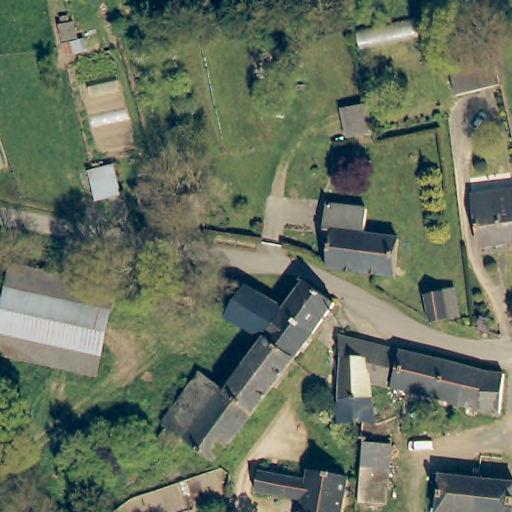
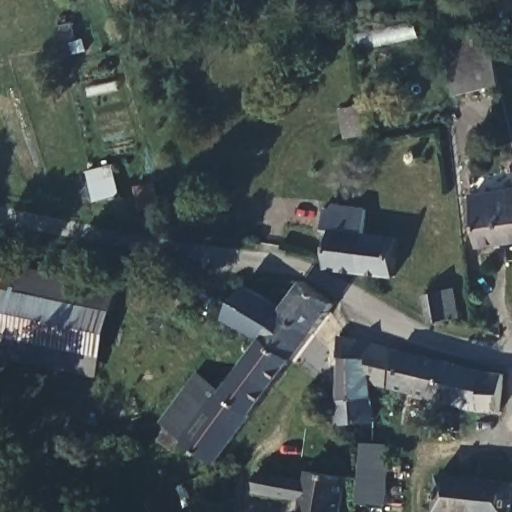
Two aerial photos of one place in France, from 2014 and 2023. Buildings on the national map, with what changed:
unchanged [(498,89),(452,99),(443,56),(474,50),(488,45),(498,89)]
unchanged [(201,178),(204,182),(205,189),(202,194),(207,193),(208,221),(183,221),(182,195),(188,195),(185,187),(187,181),(191,177),(196,176),(201,178)]
unchanged [(473,199),(512,194),(512,247),(478,250),(473,199)]
unchanged [(364,272),(332,269),(336,231),(328,231),(329,208),(368,209),(367,234),(364,272)]
unchanged [(402,237),(402,233),(412,234),(410,277),(364,272),(367,234),(402,237)]
unchanged [(115,290),(109,320),(3,298),(11,266),(115,290)]
unchanged [(285,308),(296,295),(307,281),(335,303),(318,326),(315,332),(285,308)]
unchanged [(463,315),(435,319),(428,291),(457,284),(463,315)]
unchanged [(265,338),(230,321),(248,287),(285,308),(265,338)]
unchanged [(109,320),(97,382),(0,362),(0,313),(3,298),(109,320)]
unchanged [(295,361),(265,338),(285,308),(315,332),(295,361)]
unchanged [(367,424),(340,425),(340,398),(341,357),(339,337),(364,343),(400,351),(394,385),(369,380),(372,398),(376,420),(367,421),(367,424)]
unchanged [(276,386),(246,367),(265,338),(295,361),(276,386)]
unchanged [(400,351),(444,362),(437,397),(394,385),(400,351)]
unchanged [(499,412),(479,410),(437,397),(444,362),(485,372),(504,376),(499,412)]
unchanged [(276,386),(257,413),(222,388),(229,380),(235,384),(246,367),(276,386)]
unchanged [(257,413),(220,461),(164,423),(202,374),(222,388),(257,413)]
unchanged [(345,512),(305,512),(306,502),(259,495),(262,475),(310,483),(312,473),(350,480),(345,512)]
unchanged [(476,512),(435,512),(439,478),(479,482),(476,512)]
unchanged [(512,512),(476,512),(479,482),(512,486),(512,512)]

